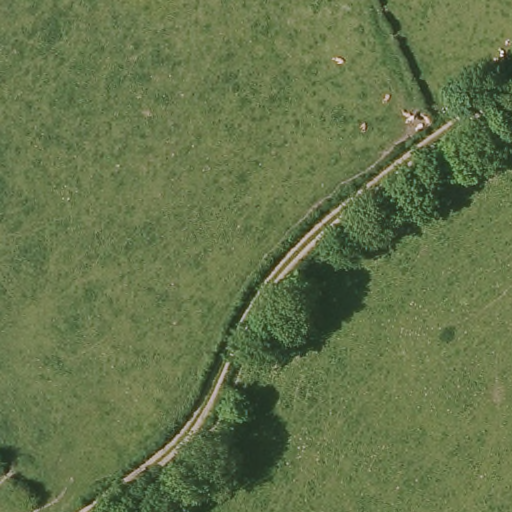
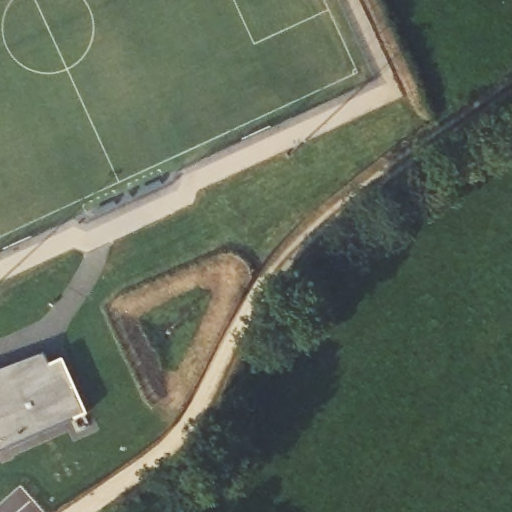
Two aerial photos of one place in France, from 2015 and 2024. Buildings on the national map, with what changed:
new [(46,366),(60,359),(85,415),(0,452),(0,370),(42,355),(46,366)]

